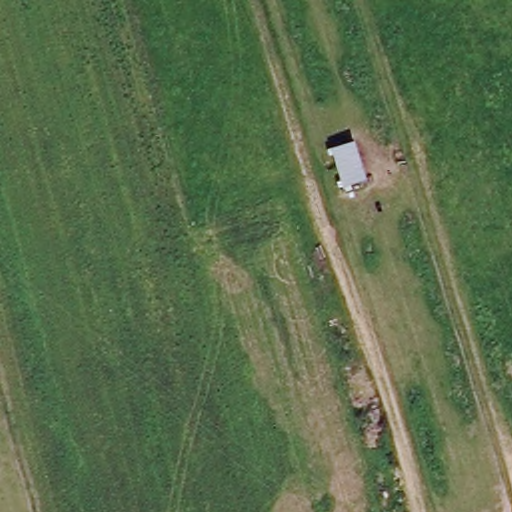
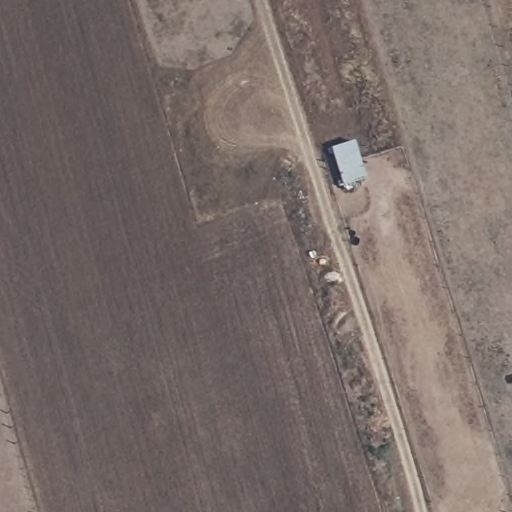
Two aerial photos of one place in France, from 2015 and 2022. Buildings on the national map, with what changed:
unchanged [(365,180),(339,186),(325,148),(350,141),(365,180)]

